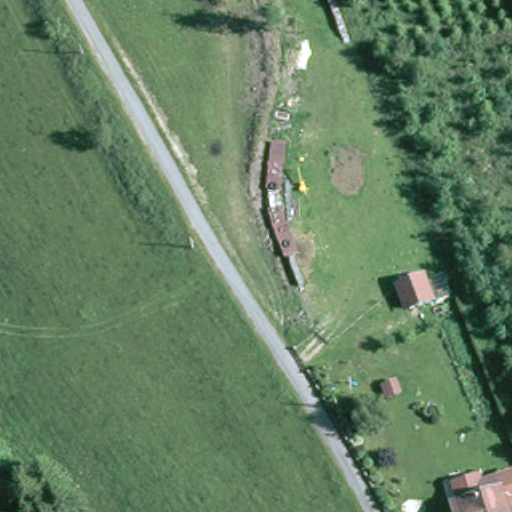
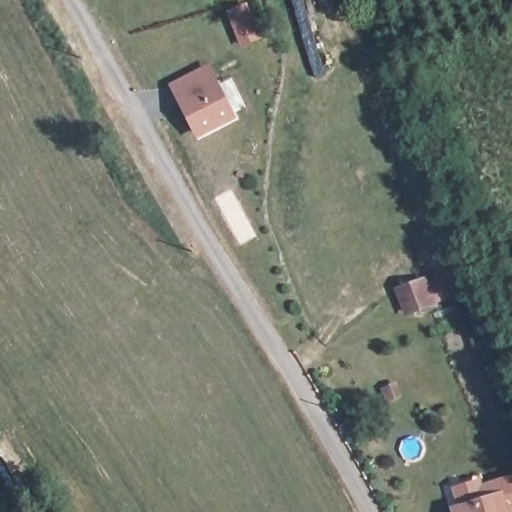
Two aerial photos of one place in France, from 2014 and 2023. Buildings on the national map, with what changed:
new [(240,117),(196,140),(167,85),(209,63),(240,117)]
demolished [(281,189),(263,188),(270,111),(289,116),(281,189)]
unchanged [(421,280),(430,304),(412,310),(403,287),(421,280)]
unchanged [(398,378),(403,397),(383,402),(377,384),(398,378)]
unchanged [(453,505),(495,492),(501,512),(455,512),(453,505)]

